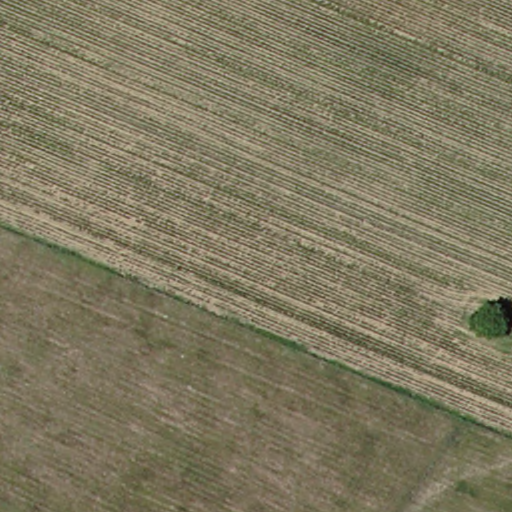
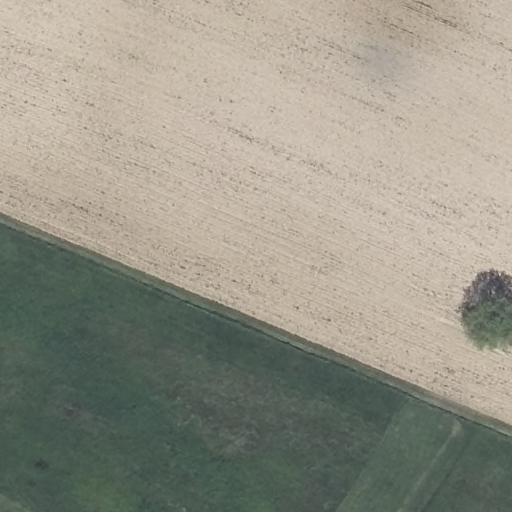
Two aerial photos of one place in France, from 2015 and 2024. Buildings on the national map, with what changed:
[]

